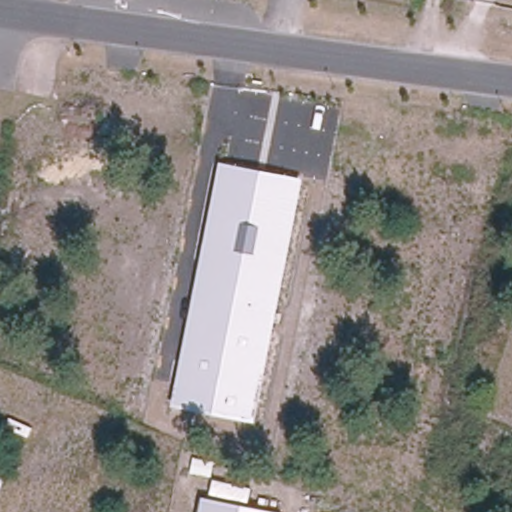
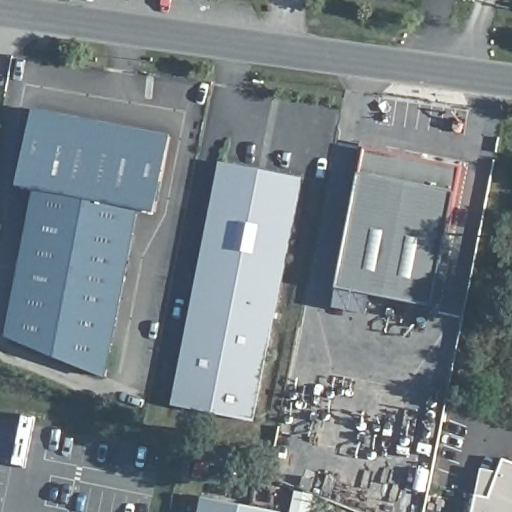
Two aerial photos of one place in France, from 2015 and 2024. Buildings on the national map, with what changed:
new [(158,213),(140,210),(35,189),(19,186),(35,108),(172,134),(158,213)]
new [(368,314),(335,308),(365,149),(460,168),(433,307),(372,295),(368,314)]
unchanged [(171,406),(219,162),(302,178),(255,422),(171,406)]
new [(7,337),(35,189),(140,210),(108,378),(7,337)]
new [(498,471),(504,460),(512,462),(512,512),(474,512),(483,468),(498,471)]
unchanged [(284,512),(198,512),(201,496),(284,512)]

